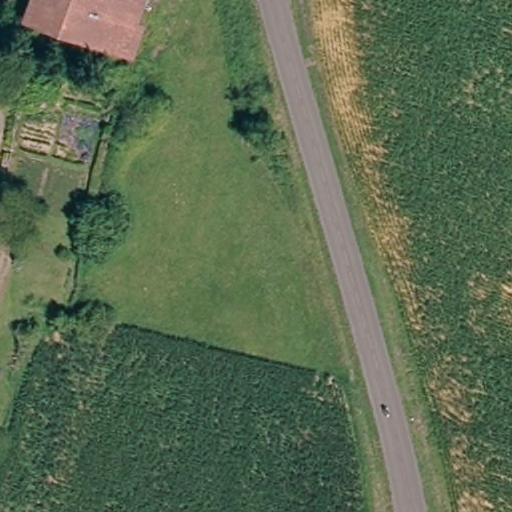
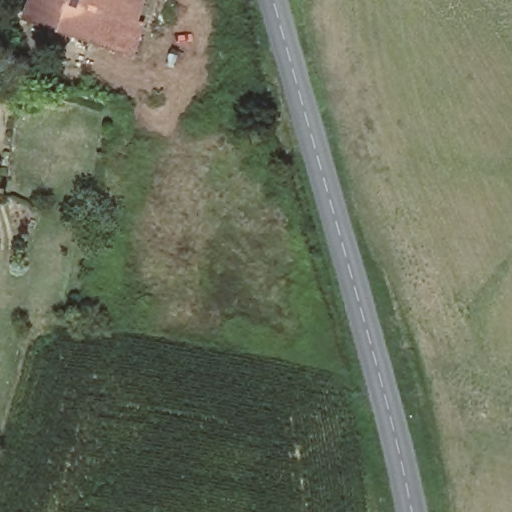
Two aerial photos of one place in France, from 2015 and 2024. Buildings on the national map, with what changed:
unchanged [(34,0),(138,0),(131,25),(140,28),(129,57),(124,55),(28,23),(34,0)]

